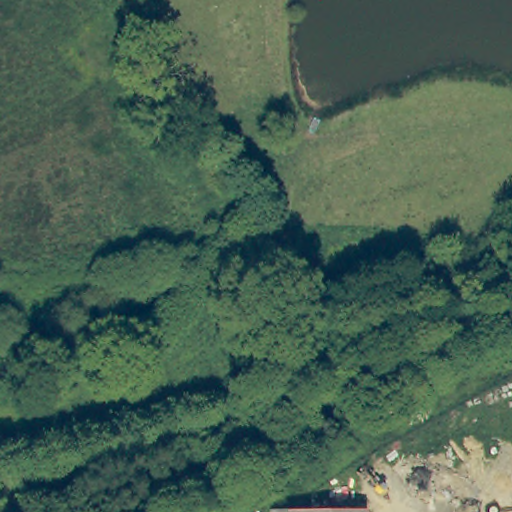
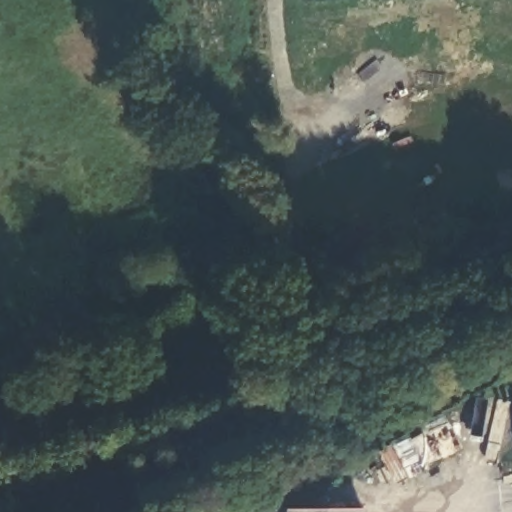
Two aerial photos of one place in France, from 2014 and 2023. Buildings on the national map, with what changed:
unchanged [(361,512),(285,512),(285,508),(361,508),(361,512)]

